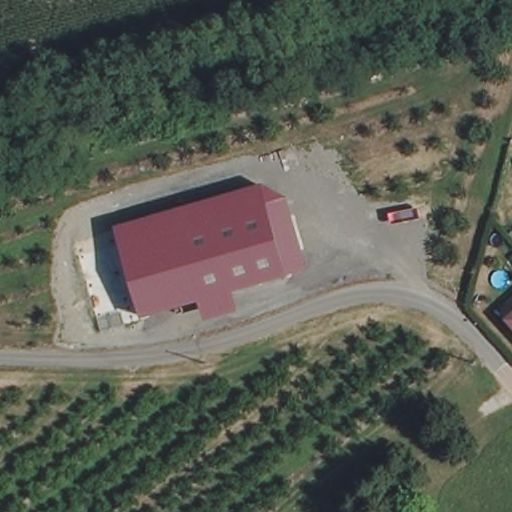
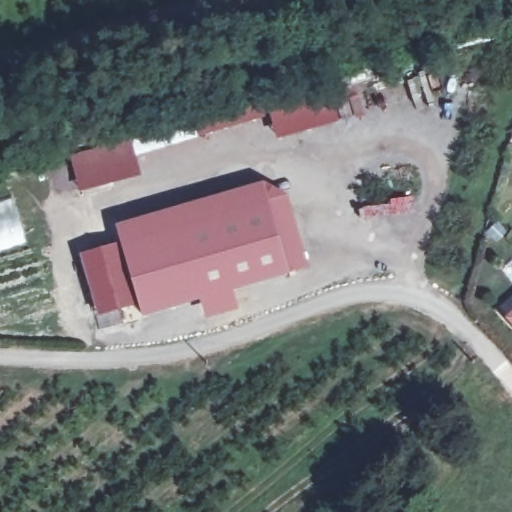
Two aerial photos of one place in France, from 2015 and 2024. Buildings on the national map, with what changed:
new [(115,141),(124,174),(78,186),(70,155),(115,141)]
unchanged [(263,184),(288,197),(307,267),(288,273),(289,277),(233,293),(238,311),(207,319),(202,302),(142,317),(116,225),(263,184)]
new [(26,241),(0,248),(0,202),(12,199),(26,241)]
new [(120,241),(139,306),(96,317),(80,255),(120,241)]
unchanged [(512,317),(512,323),(509,320),(512,317)]

